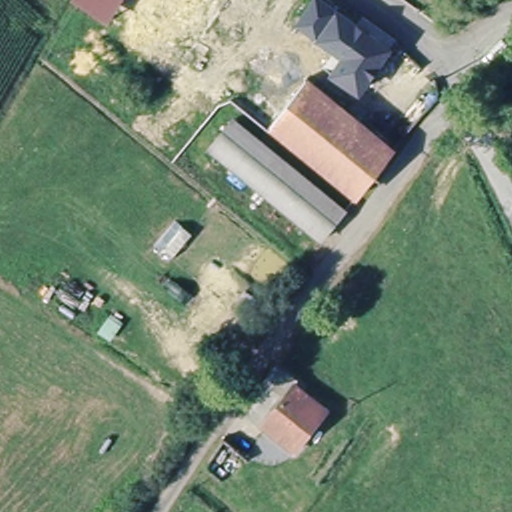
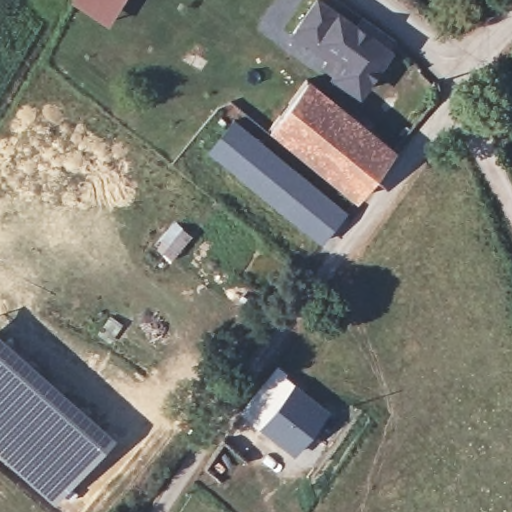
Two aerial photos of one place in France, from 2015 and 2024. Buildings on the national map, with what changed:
unchanged [(106,24),(72,0),(122,0),(106,24)]
demolished [(158,35),(167,19),(179,0),(264,0),(227,59),(201,42),(191,58),(158,35)]
unchanged [(319,3),(343,20),(349,10),(398,47),(363,96),(335,78),(346,62),(326,48),(301,83),(399,152),(364,200),(243,108),(319,3)]
unchanged [(206,155),(231,124),(347,211),(322,244),(206,155)]
new [(118,436),(71,490),(53,506),(0,462),(0,332),(24,352),(118,436)]
unchanged [(279,367),(329,410),(291,456),(243,412),(279,367)]

